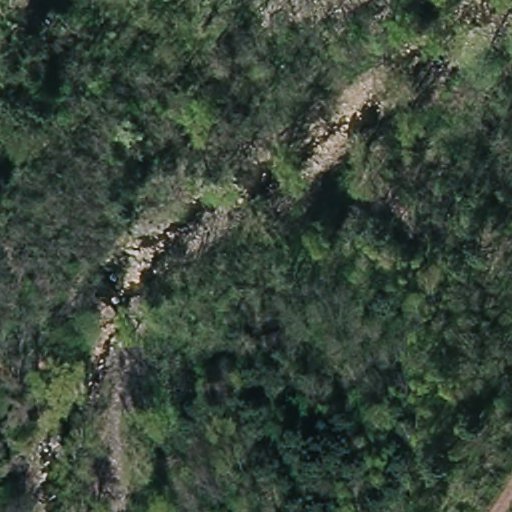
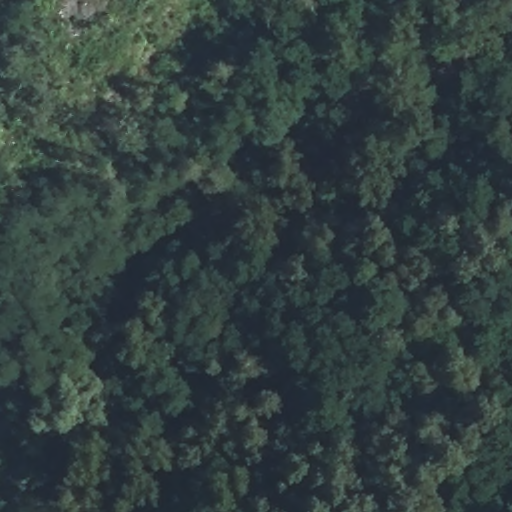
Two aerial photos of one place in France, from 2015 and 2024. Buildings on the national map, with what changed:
[]

